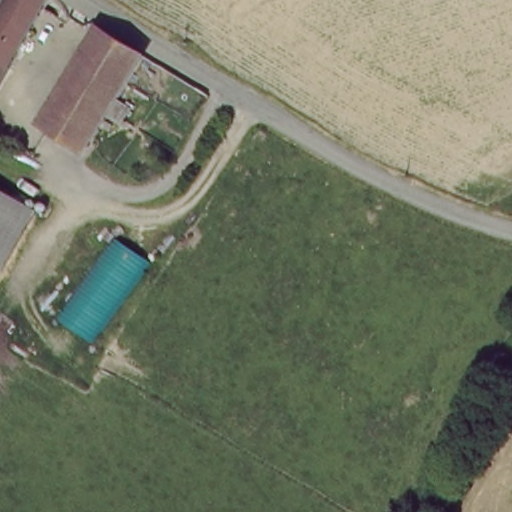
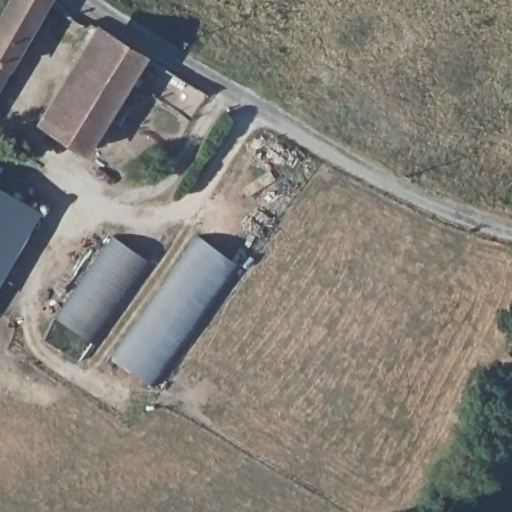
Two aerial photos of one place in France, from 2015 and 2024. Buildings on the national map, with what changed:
unchanged [(48,0),(7,70),(0,65),(0,2),(1,0),(48,0)]
unchanged [(33,125),(94,24),(135,47),(155,59),(138,87),(118,76),(74,147),(33,125)]
unchanged [(7,70),(0,82),(0,65),(7,70)]
unchanged [(38,211),(0,278),(0,188),(38,211)]
new [(149,382),(112,357),(197,236),(235,265),(149,382)]
unchanged [(97,346),(57,318),(113,239),(153,262),(97,346)]

